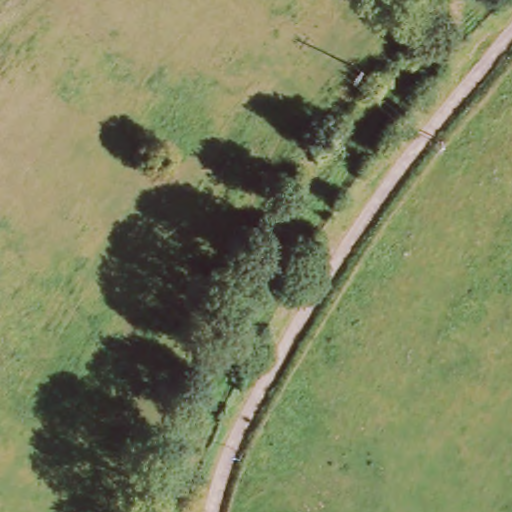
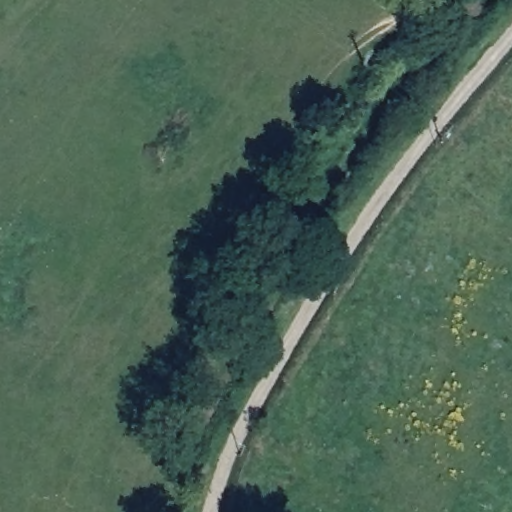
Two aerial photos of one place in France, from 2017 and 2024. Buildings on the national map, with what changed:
[]

